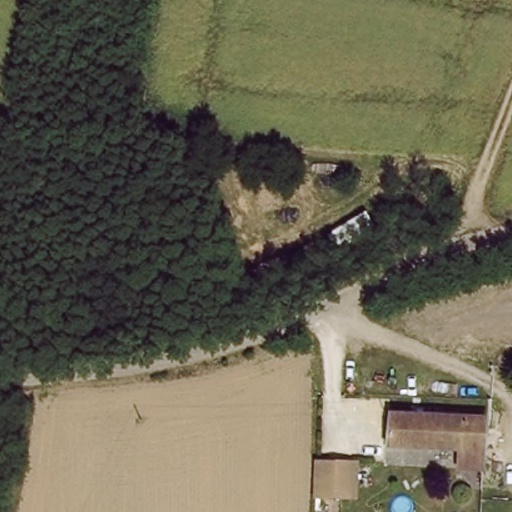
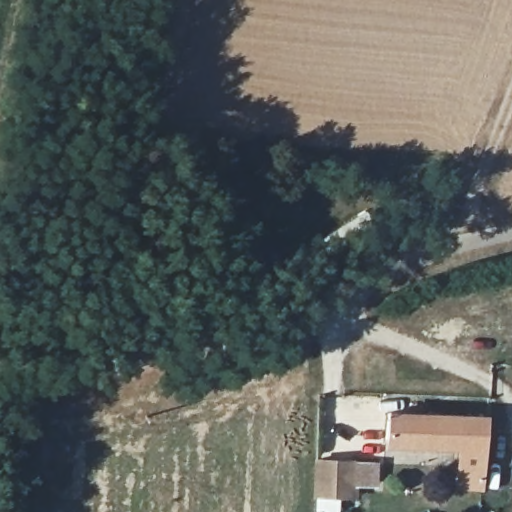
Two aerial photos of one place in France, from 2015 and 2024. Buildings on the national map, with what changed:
unchanged [(485,476),(456,474),(457,455),(388,450),(390,419),(487,425),(485,476)]
unchanged [(318,472),(318,459),(356,461),(355,496),(317,494),(318,472)]

